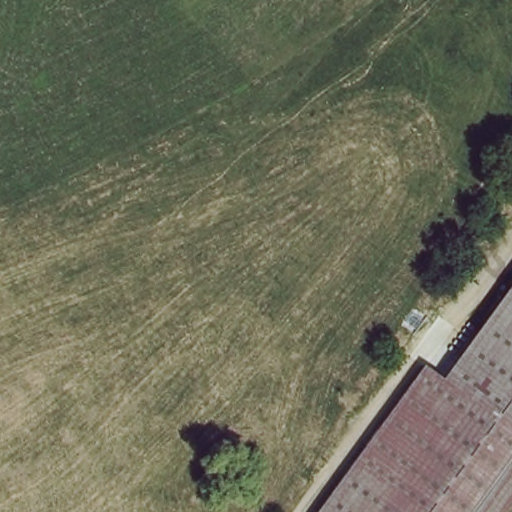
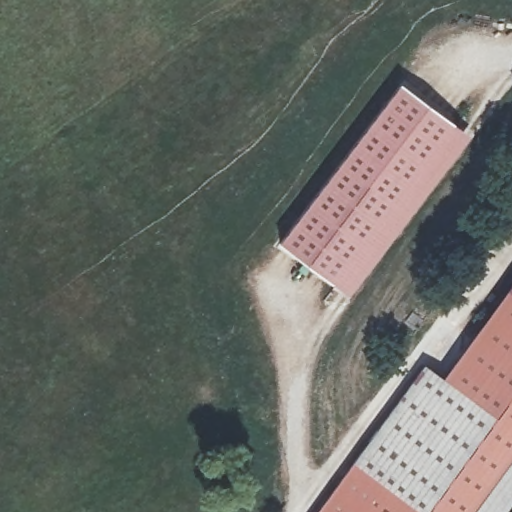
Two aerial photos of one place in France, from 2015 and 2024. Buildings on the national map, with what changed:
new [(277,242),(398,84),(468,136),(348,296),(277,242)]
new [(512,280),(512,288),(509,292),(505,290),(512,280)]
unchanged [(512,288),(512,295),(509,292),(512,288)]
unchanged [(437,387),(444,379),(508,292),(509,292),(512,295),(512,436),(450,393),(447,396),(437,387)]
unchanged [(444,379),(437,387),(447,396),(359,512),(311,512),(422,362),(444,379)]
unchanged [(450,393),(512,436),(512,495),(499,512),(359,512),(447,396),(450,393)]

